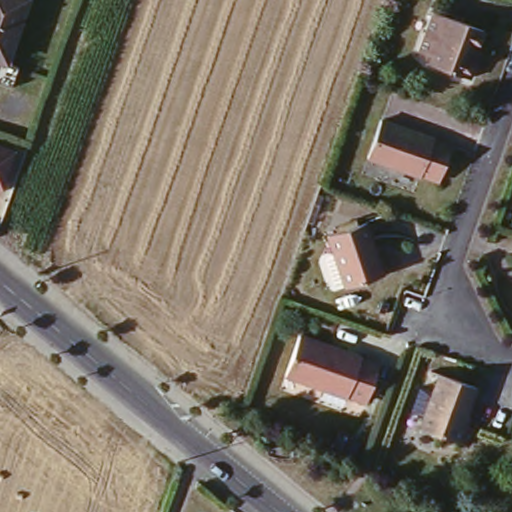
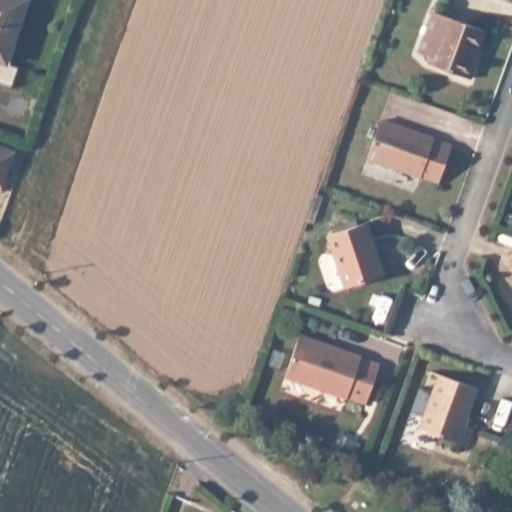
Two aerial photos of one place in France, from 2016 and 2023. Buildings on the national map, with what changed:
unchanged [(22,0),(26,1),(9,46),(3,65),(0,64),(0,0),(22,0)]
unchanged [(423,54),(438,14),(452,20),(488,34),(477,61),(481,63),(473,80),(435,65),(436,59),(423,54)]
unchanged [(381,123),(453,149),(440,188),(368,161),(381,123)]
unchanged [(10,150),(0,184),(0,147),(10,150)]
unchanged [(370,225),(385,279),(346,291),(330,238),(370,225)]
unchanged [(381,368),(367,406),(287,376),(301,339),(381,368)]
unchanged [(440,371),(476,384),(465,419),(474,424),(467,442),(421,426),(440,371)]
unchanged [(304,455),(297,469),(271,456),(277,442),(304,455)]

